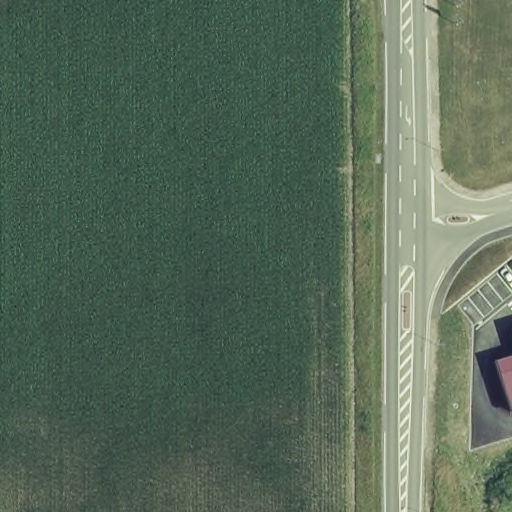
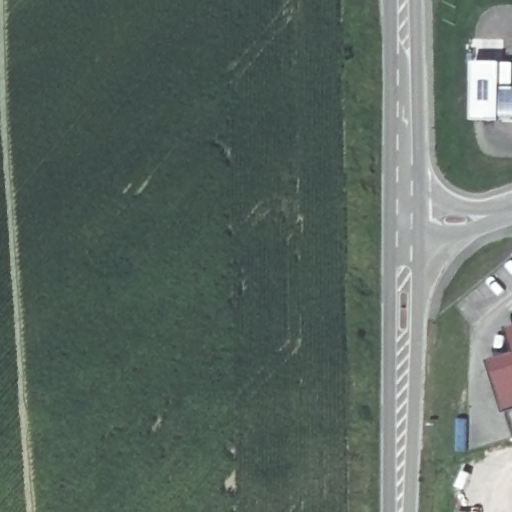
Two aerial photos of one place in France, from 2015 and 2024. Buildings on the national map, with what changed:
new [(512,63),(512,122),(505,122),(475,122),(476,63),(512,63)]
unchanged [(510,330),(512,329),(512,337),(510,330)]
unchanged [(508,411),(492,362),(512,355),(512,410),(508,411)]

